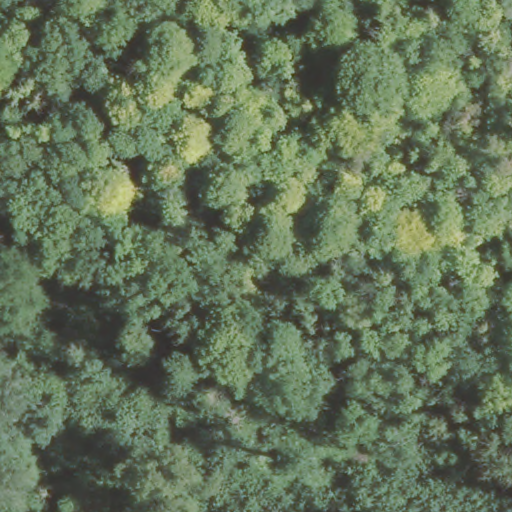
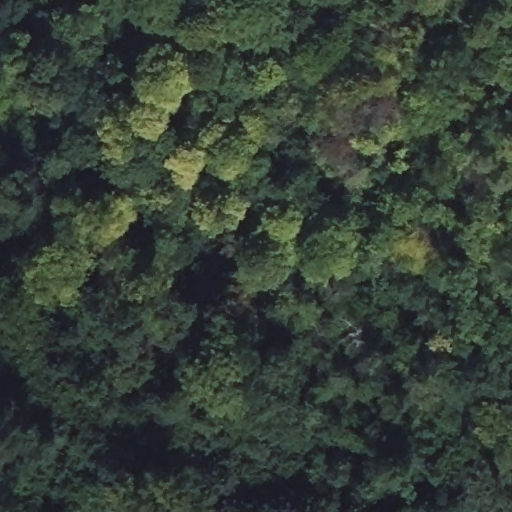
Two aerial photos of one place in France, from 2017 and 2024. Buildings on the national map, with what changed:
[]

